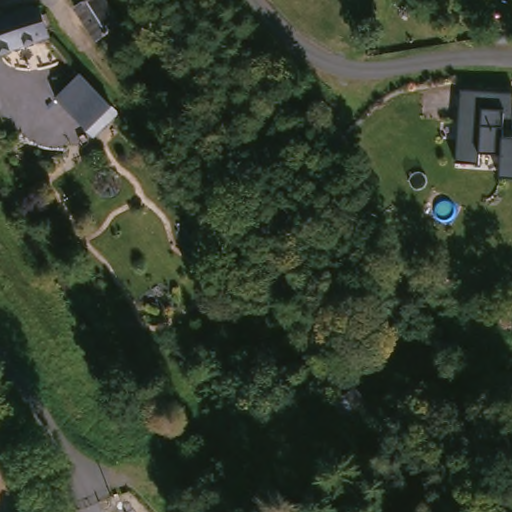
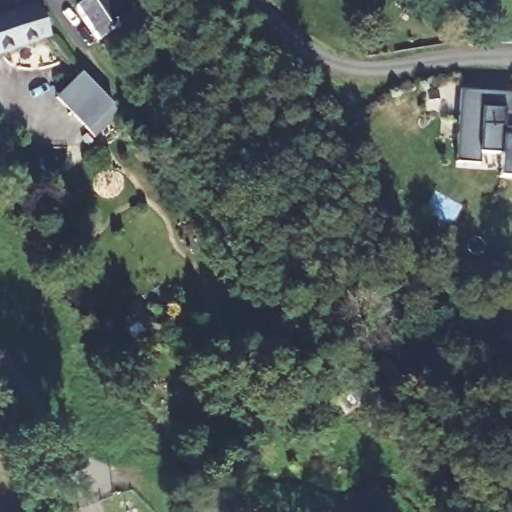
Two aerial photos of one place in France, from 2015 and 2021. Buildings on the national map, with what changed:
unchanged [(99,45),(73,9),(86,0),(101,0),(121,28),(99,45)]
unchanged [(51,30),(0,50),(0,14),(39,1),(51,30)]
unchanged [(81,73),(113,106),(120,113),(95,138),(89,130),(57,98),(81,73)]
unchanged [(512,178),(500,176),(500,156),(481,153),(480,166),(458,165),(462,89),(512,93),(512,178)]

